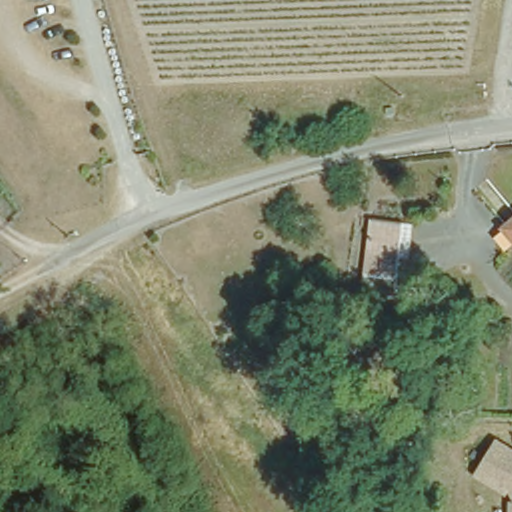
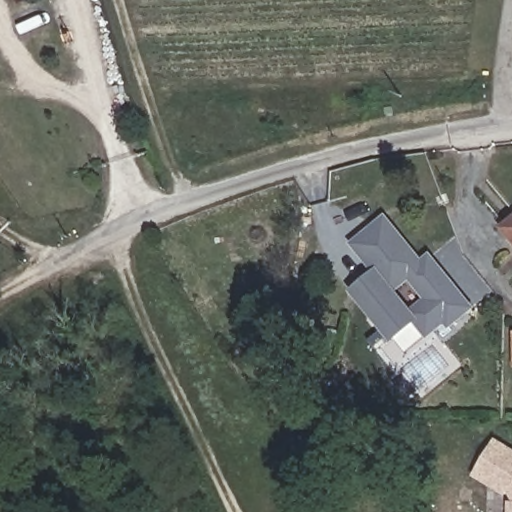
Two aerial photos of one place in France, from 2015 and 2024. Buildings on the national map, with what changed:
unchanged [(502,220),(503,216),(512,209),(512,238),(500,224),(502,220)]
new [(469,308),(446,327),(442,321),(430,331),(420,330),(412,321),(408,313),(425,300),(407,277),(390,291),(373,272),(377,270),(368,258),(364,261),(351,245),(382,219),(419,264),(427,257),(469,308)]
demolished [(358,275),(368,220),(400,225),(390,280),(358,275)]
new [(412,321),(389,340),(350,291),(373,272),(390,291),(408,313),(412,321)]
unchanged [(262,333),(261,333),(265,320),(283,325),(279,338),(262,333)]
unchanged [(512,498),(506,486),(502,490),(485,477),(472,467),(494,436),(512,449),(512,498)]
unchanged [(512,499),(512,512),(506,512),(507,499),(512,499)]

